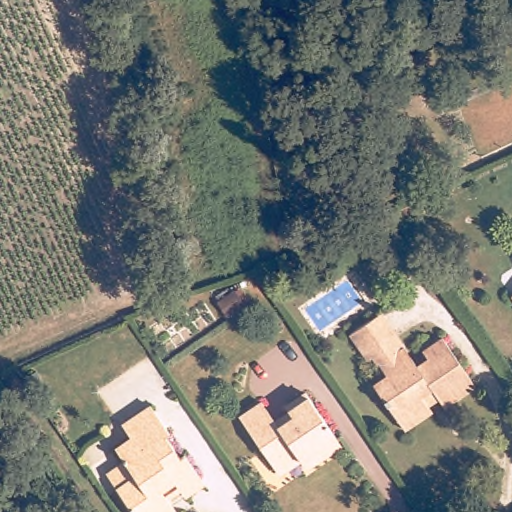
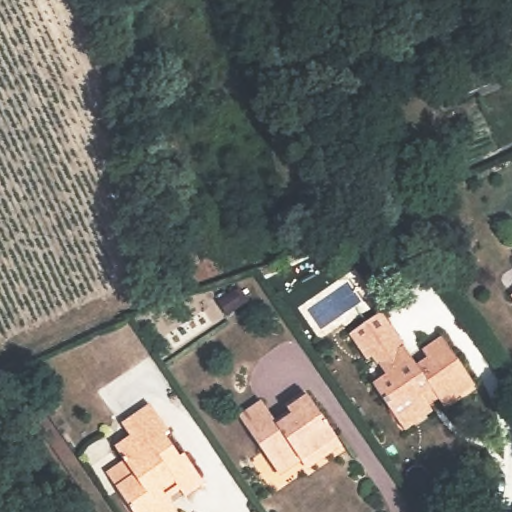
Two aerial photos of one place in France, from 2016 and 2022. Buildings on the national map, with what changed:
unchanged [(371,359),(367,362),(348,335),(379,313),(418,368),(429,361),(423,353),(442,339),(475,388),(446,408),(432,391),(421,398),(427,407),(398,427),(371,387),(384,378),(371,359)]
unchanged [(296,460),(275,474),(237,423),(260,407),(278,431),(294,420),(286,409),(306,393),(339,438),(318,452),(322,457),(305,471),(296,460)]
unchanged [(129,467),(118,452),(133,441),(123,427),(151,407),(171,435),(166,438),(182,460),(186,457),(202,478),(169,502),(176,512),(131,512),(118,496),(109,482),(129,467)]

